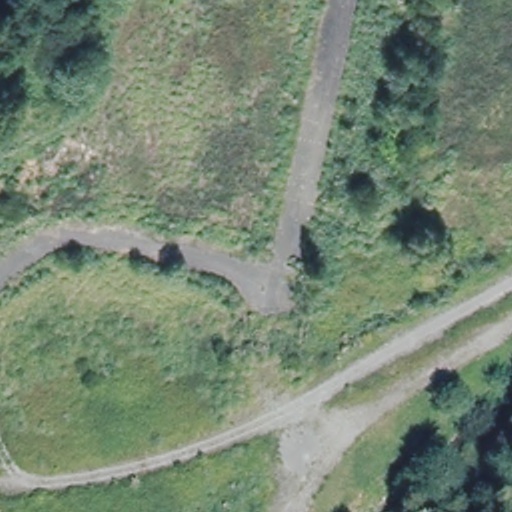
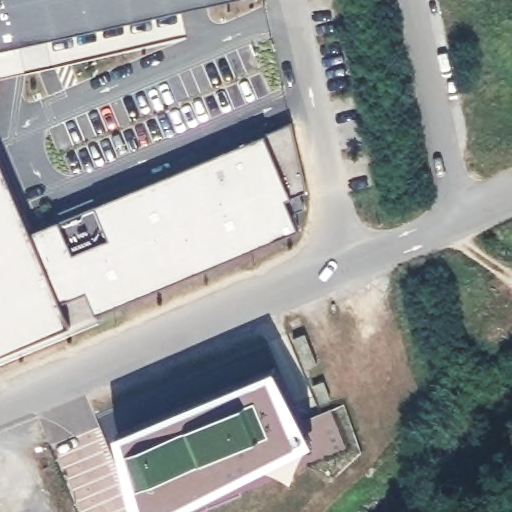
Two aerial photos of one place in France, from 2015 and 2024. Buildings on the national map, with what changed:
new [(0,49),(0,0),(217,0),(0,49)]
new [(31,232),(265,134),(290,121),(304,190),(298,192),(302,207),(291,212),(298,226),(95,311),(86,292),(61,303),(71,325),(0,355),(0,159),(31,232)]
new [(171,512),(137,512),(117,432),(277,364),(314,438),(171,512)]

